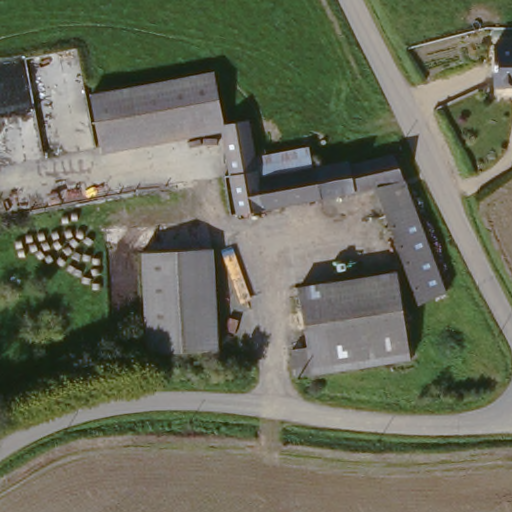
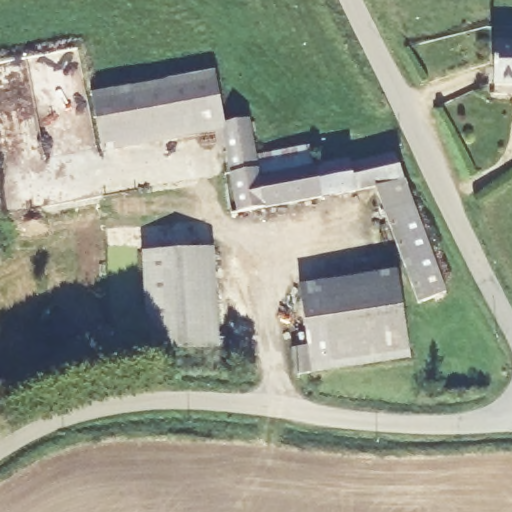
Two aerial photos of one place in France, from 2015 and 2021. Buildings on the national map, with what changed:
unchanged [(512,94),(483,91),(485,45),(512,48),(512,94)]
unchanged [(102,149),(94,98),(216,79),(224,130),(102,149)]
unchanged [(226,216),(221,187),(232,185),(224,130),(249,126),(257,181),(394,160),(405,189),(331,201),(271,210),(262,211),(237,215),(226,216)]
unchanged [(411,310),(374,205),(404,196),(446,299),(429,305),(421,307),(411,310)]
unchanged [(141,258),(183,258),(208,259),(209,355),(151,355),(139,355),(140,281),(141,258)]
unchanged [(404,339),(305,350),(298,292),(355,284),(394,279),(399,311),(404,339)]
unchanged [(408,366),(296,380),(294,380),(289,352),(305,350),(404,339),(408,366)]

